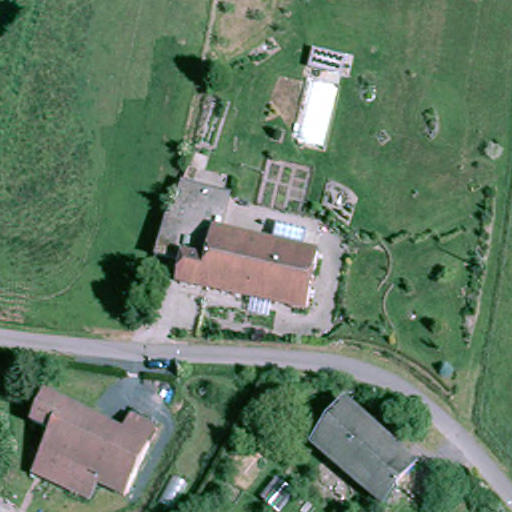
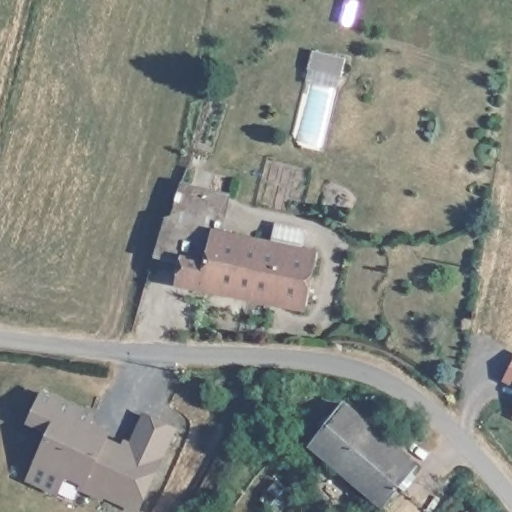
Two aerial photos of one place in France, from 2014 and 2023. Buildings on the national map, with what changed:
unchanged [(218,235),(315,256),(306,312),(185,285),(190,263),(160,256),(176,191),(226,203),(218,235)]
new [(512,366),(512,386),(503,382),(512,366)]
unchanged [(105,478),(100,476),(103,470),(49,443),(43,440),(51,422),(37,415),(50,388),(130,427),(137,411),(167,426),(158,441),(130,493),(105,478)]
unchanged [(385,500),(330,452),(317,442),(350,403),(418,463),(385,500)]
unchanged [(52,473),(48,480),(35,473),(49,443),(103,470),(100,476),(105,478),(96,494),(52,473)]

